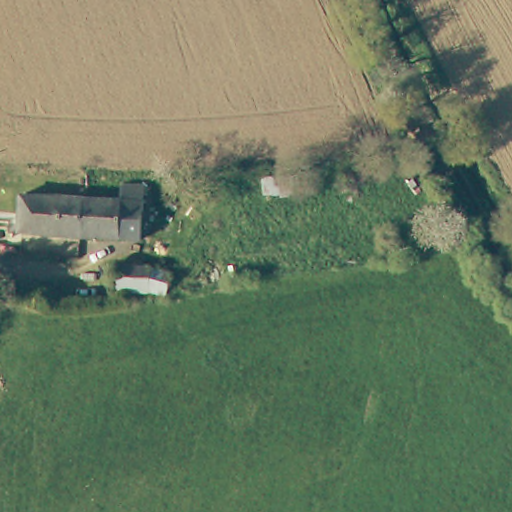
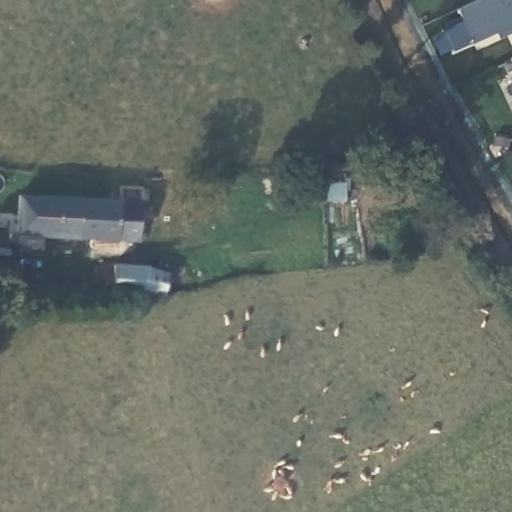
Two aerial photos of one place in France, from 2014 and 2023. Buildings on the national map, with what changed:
new [(459,8),(476,0),(512,0),(512,30),(499,36),(496,31),(472,41),(469,36),(450,47),(442,30),(464,18),(459,8)]
unchanged [(122,204),(123,188),(146,189),(143,241),(83,237),(85,203),(122,204)]
unchanged [(83,237),(21,233),(23,199),(85,203),(83,237)]
unchanged [(167,272),(165,293),(112,290),(113,268),(167,272)]

